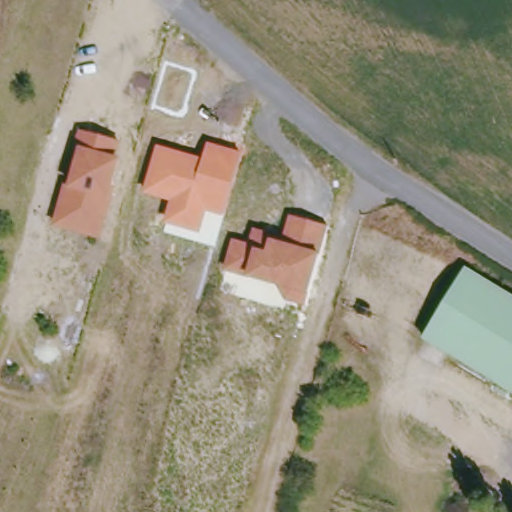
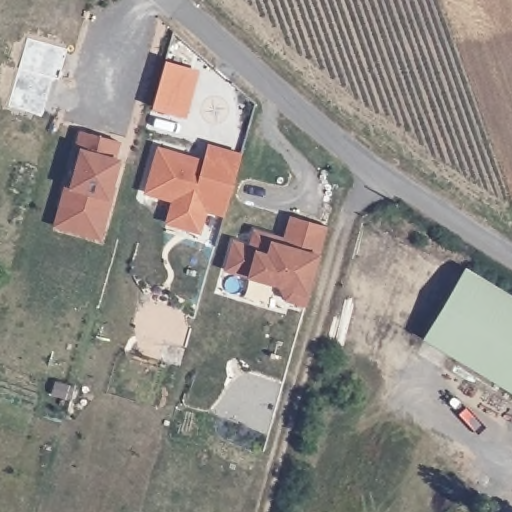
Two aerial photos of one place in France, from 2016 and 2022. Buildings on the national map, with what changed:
new [(152,108),(165,61),(200,70),(187,116),(152,108)]
unchanged [(64,184),(67,184),(80,130),(122,142),(117,158),(121,159),(114,186),(117,187),(103,239),(52,226),(64,184)]
unchanged [(170,201),(144,194),(157,145),(204,159),(209,143),(242,152),(225,216),(207,212),(202,234),(165,222),(170,201)]
unchanged [(306,307),(285,302),(280,286),(249,278),(223,271),(232,239),(249,244),(253,227),(284,235),(289,215),(327,226),(306,307)]
unchanged [(512,299),(512,394),(417,337),(459,267),(512,299)]

